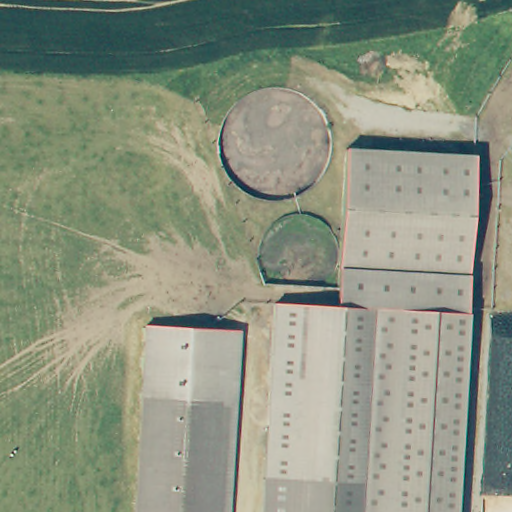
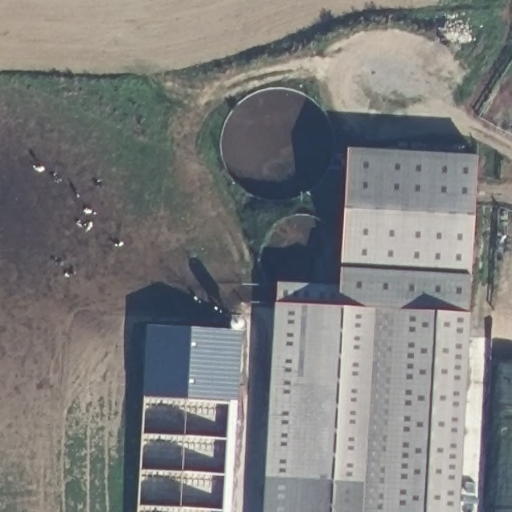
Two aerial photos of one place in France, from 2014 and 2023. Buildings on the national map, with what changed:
unchanged [(478,157),(461,512),(387,512),(388,485),(399,311),(337,307),(347,148),(478,157)]
unchanged [(282,303),(337,307),(399,311),(388,485),(271,477),(282,303)]
unchanged [(142,398),(146,326),(242,331),(238,403),(142,398)]
unchanged [(238,403),(232,512),(136,512),(142,398),(238,403)]
unchanged [(387,512),(269,512),(271,477),(388,485),(387,512)]

